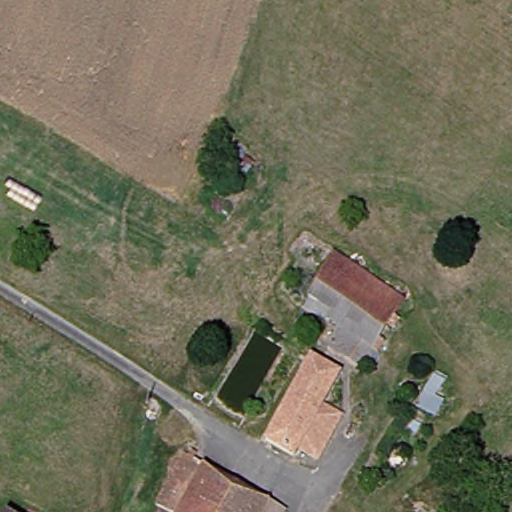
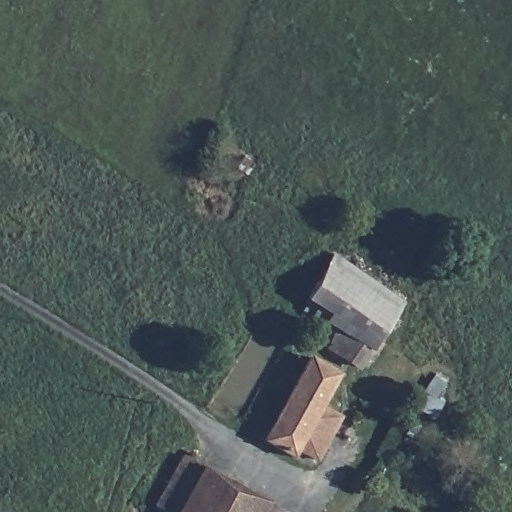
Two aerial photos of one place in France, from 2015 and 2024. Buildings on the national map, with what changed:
unchanged [(363,374),(332,357),(337,348),(308,327),(320,307),(304,297),(318,273),(332,251),(408,304),(363,374)]
unchanged [(294,455),(292,458),(260,440),(306,360),(338,378),(319,408),(339,421),(314,463),(294,455)]
unchanged [(144,510),(175,458),(273,512),(149,512),(144,510)]

